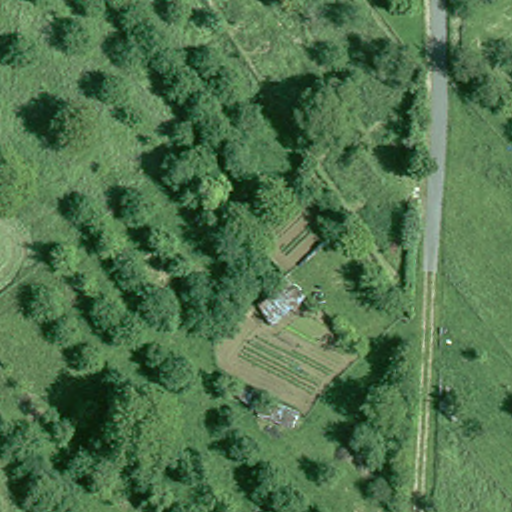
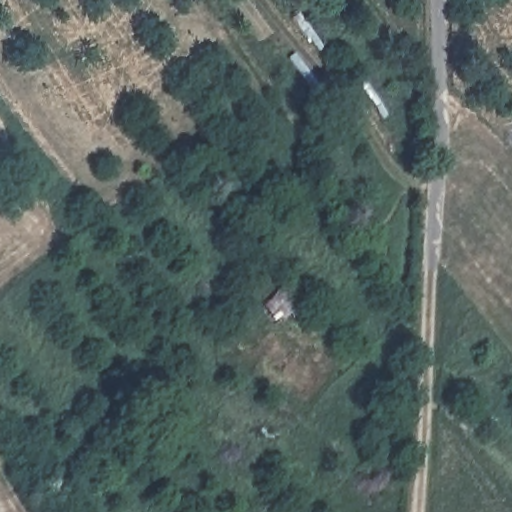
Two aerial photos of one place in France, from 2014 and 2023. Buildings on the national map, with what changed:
[]

